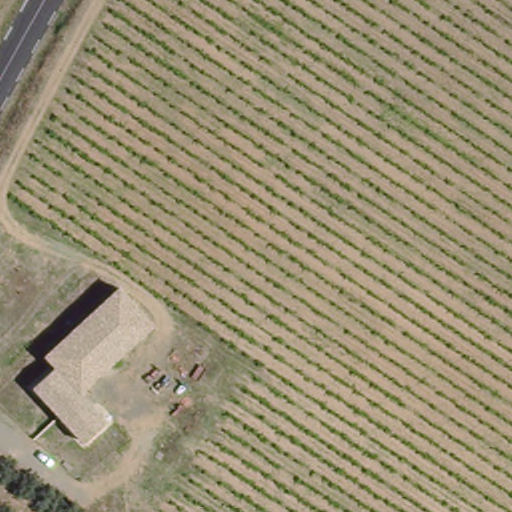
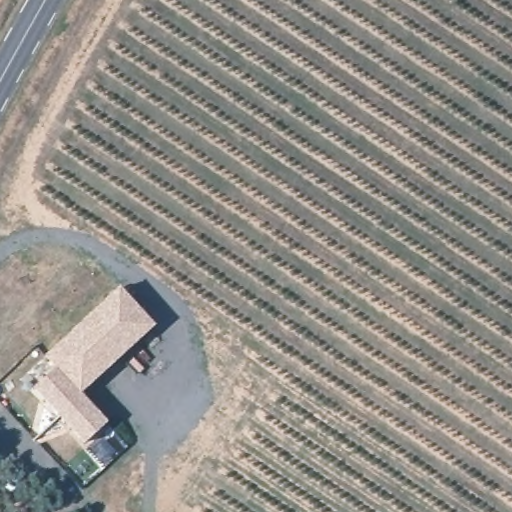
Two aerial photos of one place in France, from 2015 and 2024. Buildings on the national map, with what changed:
unchanged [(153,324),(81,392),(105,421),(82,442),(33,387),(55,367),(47,354),(122,287),(153,324)]

